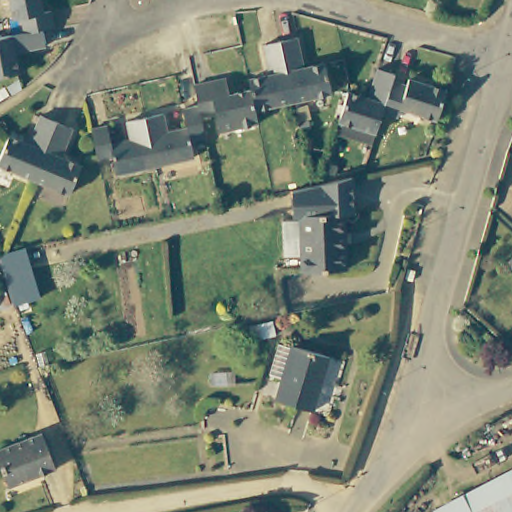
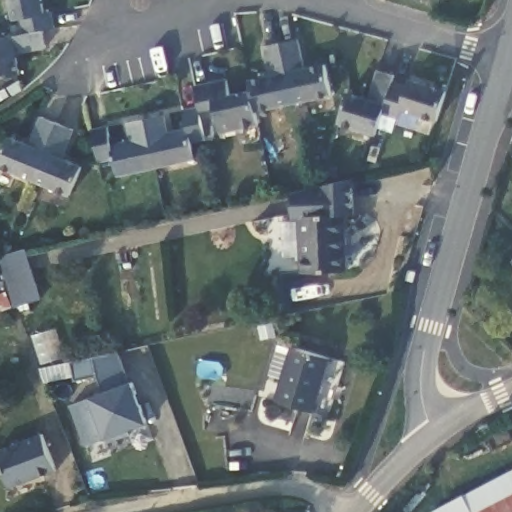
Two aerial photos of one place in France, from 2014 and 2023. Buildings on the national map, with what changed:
unchanged [(43,19),(51,17),(54,32),(43,35),(46,50),(16,56),(21,77),(0,81),(0,44),(23,39),(20,25),(13,26),(8,0),(39,0),(43,19)]
unchanged [(246,80),(268,75),(260,45),(294,36),(302,66),(323,61),(330,90),(253,110),(249,91),(246,80)]
unchanged [(351,96),(372,102),(382,72),(398,77),(396,84),(410,89),(412,82),(450,94),(441,124),(406,114),(404,120),(387,116),(381,137),(353,129),(343,125),(348,108),(351,96)]
unchanged [(256,123),(219,132),(215,117),(201,120),(206,139),(191,142),(196,160),(176,165),(168,135),(188,130),(185,113),(198,110),(193,89),(224,81),(228,96),(249,91),(253,110),(256,123)]
unchanged [(176,165),(120,179),(116,162),(101,166),(93,135),(108,131),(112,149),(132,144),(128,126),(164,117),(168,135),(176,165)]
unchanged [(59,161),(76,168),(78,177),(70,200),(0,172),(0,166),(9,142),(28,150),(39,121),(67,132),(70,133),(68,137),(59,161)]
unchanged [(352,217),(342,219),(345,273),(302,276),(301,260),(284,260),(281,225),(299,225),(299,221),(291,221),(290,196),(298,195),(312,191),(323,188),(350,181),(352,217)]
unchanged [(42,301),(18,310),(3,261),(27,254),(42,301)]
unchanged [(413,268),(410,277),(403,275),(406,266),(413,268)]
unchanged [(281,347),(331,360),(317,413),(279,403),(285,381),(272,378),(281,347)]
new [(71,405),(91,397),(133,381),(149,423),(106,440),(104,436),(83,443),(71,405)]
unchanged [(37,437),(53,472),(8,492),(0,475),(0,453),(37,437)]
demolished [(512,478),(510,475),(512,473),(512,478)]
unchanged [(512,478),(512,512),(437,512),(510,475),(512,478)]

